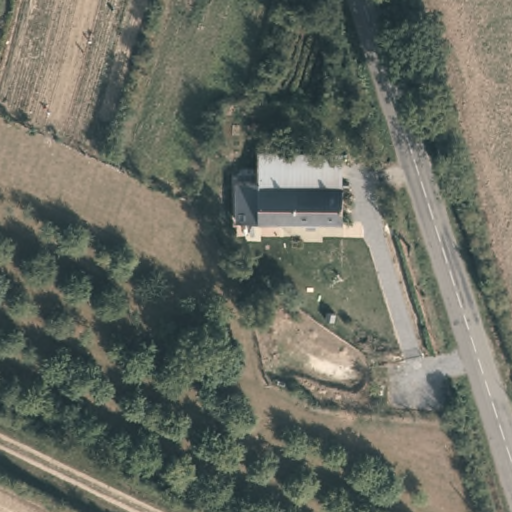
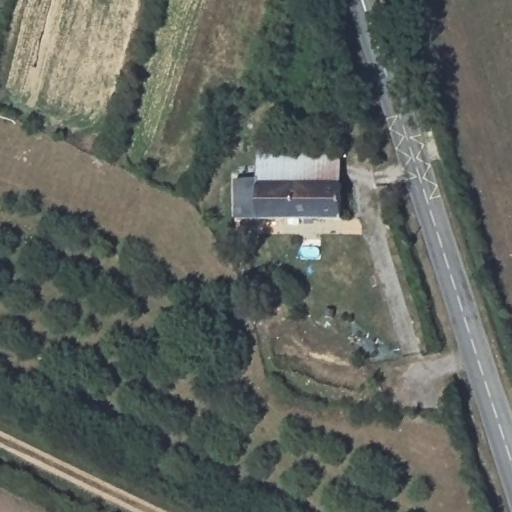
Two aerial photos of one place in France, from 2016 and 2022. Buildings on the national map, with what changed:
unchanged [(260,174),(261,141),(342,144),(342,178),(260,174)]
unchanged [(342,216),(236,212),(238,173),(260,174),(342,178),(342,216)]

